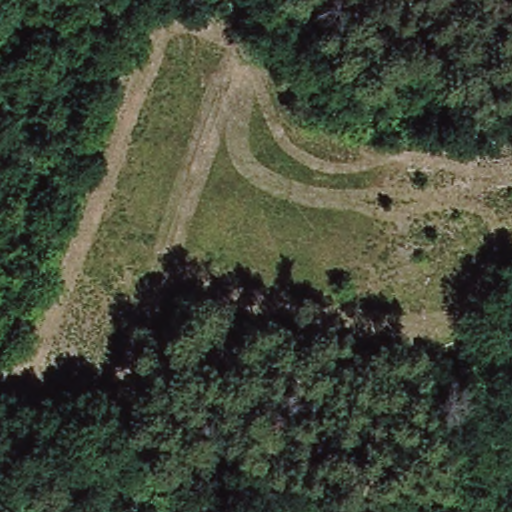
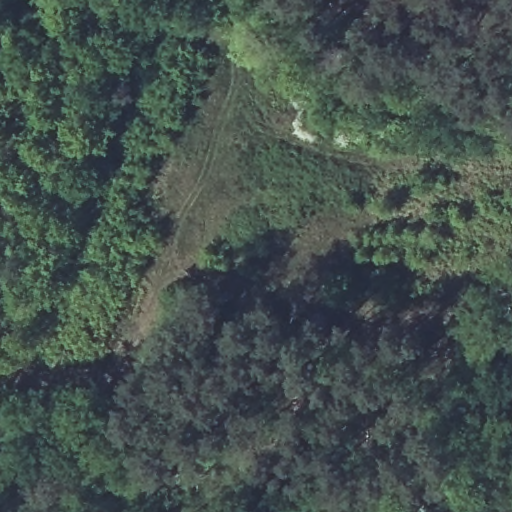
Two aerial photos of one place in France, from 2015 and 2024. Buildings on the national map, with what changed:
unchanged [(309,81),(313,54),(399,72),(394,97),(309,81)]

